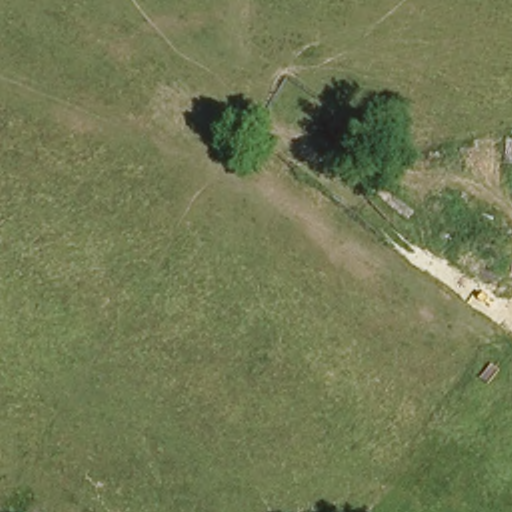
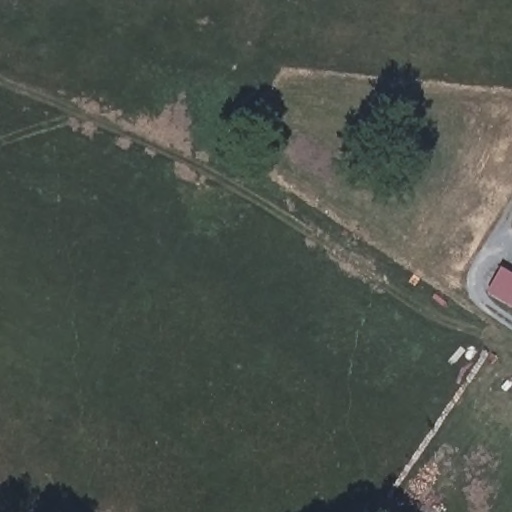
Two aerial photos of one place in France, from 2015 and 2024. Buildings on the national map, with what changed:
new [(487,290),(501,266),(512,273),(512,304),(487,290)]

